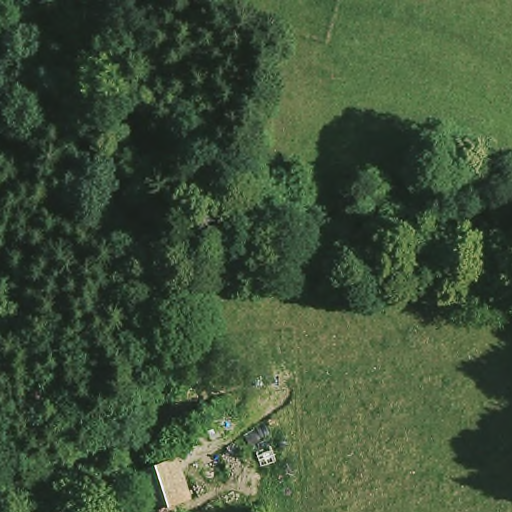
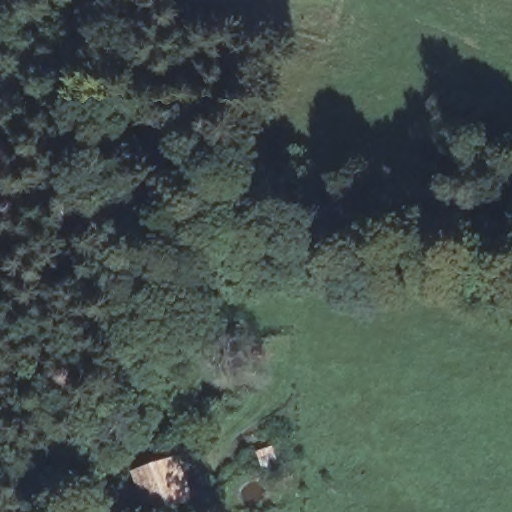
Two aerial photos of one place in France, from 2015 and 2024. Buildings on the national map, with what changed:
unchanged [(200,496),(163,508),(150,467),(187,455),(200,496)]

